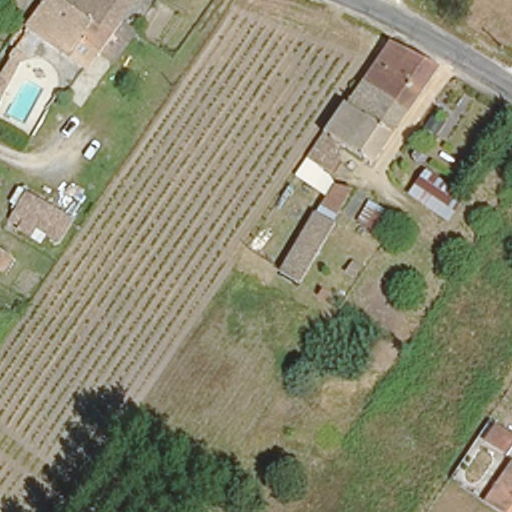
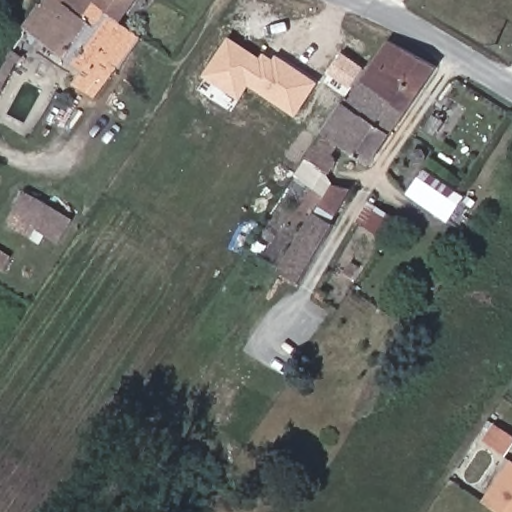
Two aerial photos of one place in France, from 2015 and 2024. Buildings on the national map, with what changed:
unchanged [(20,33),(49,0),(74,0),(115,23),(84,69),(20,33)]
unchanged [(115,23),(74,0),(130,0),(115,23)]
unchanged [(357,80),(385,37),(432,62),(402,107),(357,80)]
new [(295,118),(249,87),(239,101),(205,76),(231,39),(262,59),(267,50),(318,84),(295,118)]
unchanged [(375,147),(332,118),(357,80),(402,107),(375,147)]
unchanged [(311,185),(291,172),(301,156),(310,142),(328,115),(332,118),(375,147),(364,162),(338,146),(333,153),(344,160),(333,179),(350,188),(331,216),(315,206),(324,193),(311,185)]
unchanged [(419,204),(406,196),(425,167),(466,194),(468,195),(462,206),(449,223),(419,204)]
unchanged [(58,246),(8,211),(23,190),(74,219),(58,246)]
unchanged [(357,220),(367,204),(394,221),(399,224),(389,239),(383,236),(357,220)]
unchanged [(275,275),(280,268),(283,264),(314,215),(332,226),(300,273),(297,279),(293,285),(275,275)]
unchanged [(509,425),(512,427),(512,464),(492,452),(509,425)]
unchanged [(512,512),(496,512),(512,489),(512,512)]

